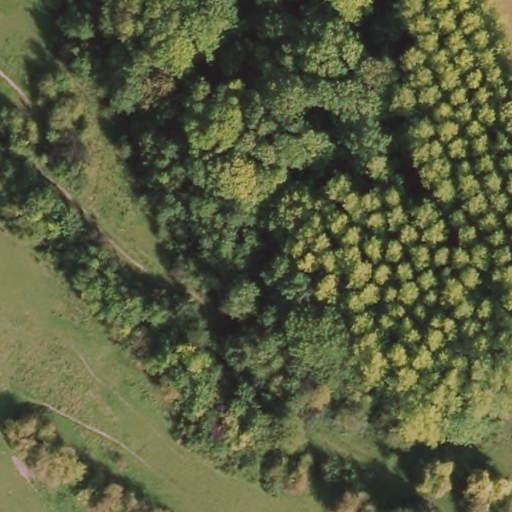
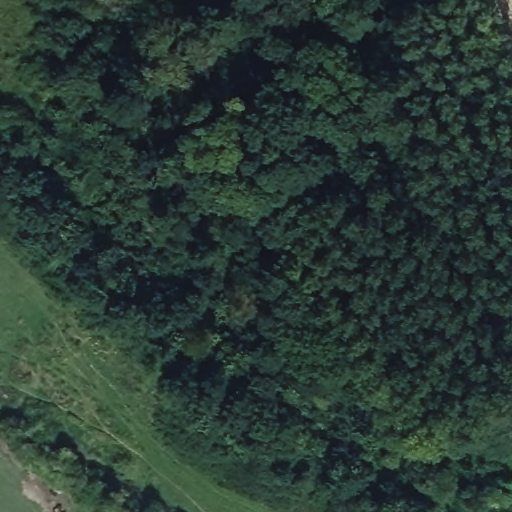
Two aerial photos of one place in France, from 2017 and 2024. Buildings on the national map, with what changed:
unchanged [(153,11),(148,0),(163,0),(165,5),(153,11)]

